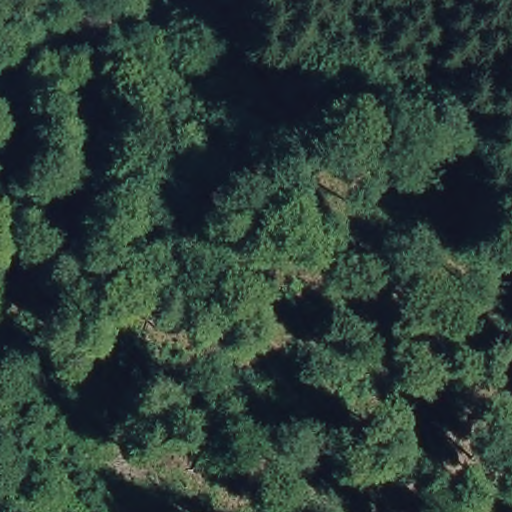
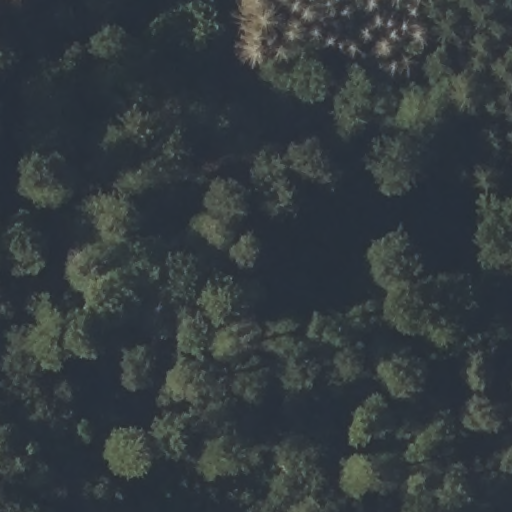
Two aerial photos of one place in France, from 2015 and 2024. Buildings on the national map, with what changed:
unchanged [(270,82),(237,58),(251,38),(284,62),(270,82)]

